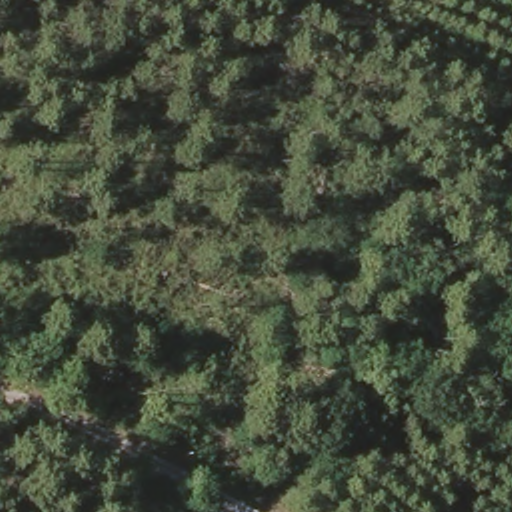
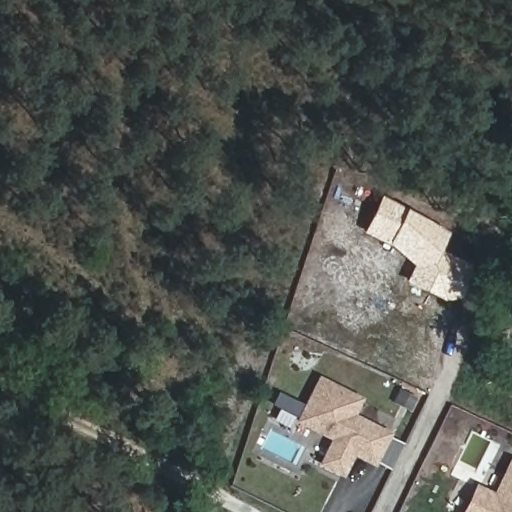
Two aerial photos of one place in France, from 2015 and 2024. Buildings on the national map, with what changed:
new [(413,266),(388,244),(363,233),(381,196),(407,210),(447,232),(438,251),(472,267),(459,298),(444,300),(406,282),(413,266)]
new [(392,438),(404,443),(391,470),(378,464),(376,468),(353,455),(345,477),(320,467),(332,440),(297,422),(319,377),(362,398),(356,414),(393,434),(392,438)]
new [(493,492),(510,457),(512,458),(512,512),(462,512),(476,485),(493,492)]

